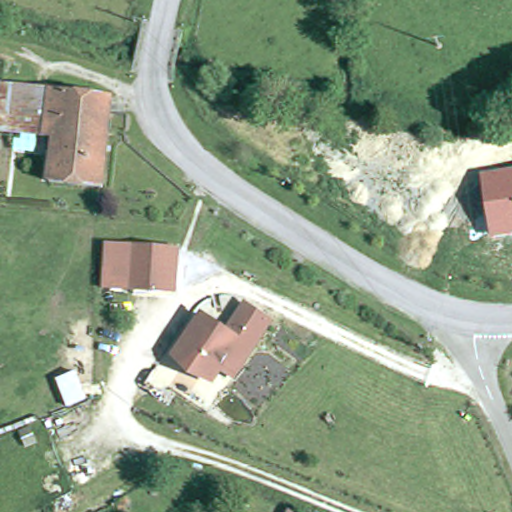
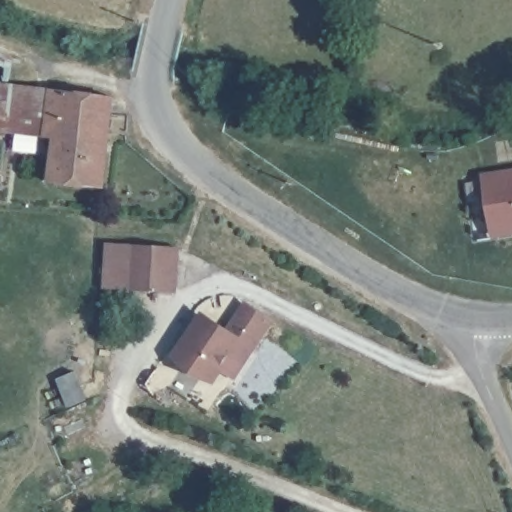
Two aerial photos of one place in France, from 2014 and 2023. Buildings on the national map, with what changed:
unchanged [(55,182),(60,135),(2,129),(7,82),(101,93),(116,95),(107,187),(55,182)]
unchanged [(490,238),(480,174),(512,170),(512,235),(490,238)]
unchanged [(179,293),(127,290),(130,244),(180,247),(179,293)]
unchanged [(225,328),(243,300),(274,321),(235,379),(222,373),(213,385),(168,359),(199,309),(225,328)]
unchanged [(285,508),(294,512),(284,512),(285,508)]

